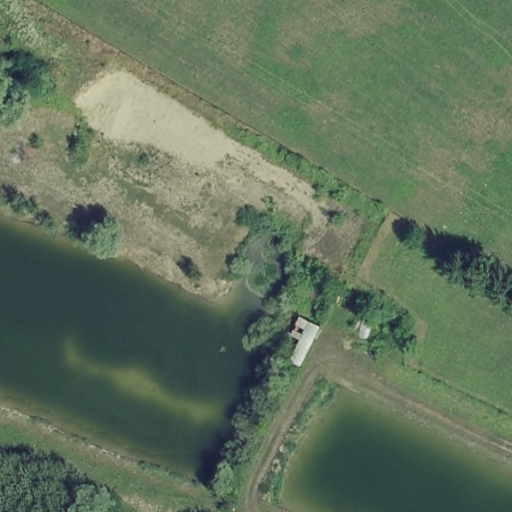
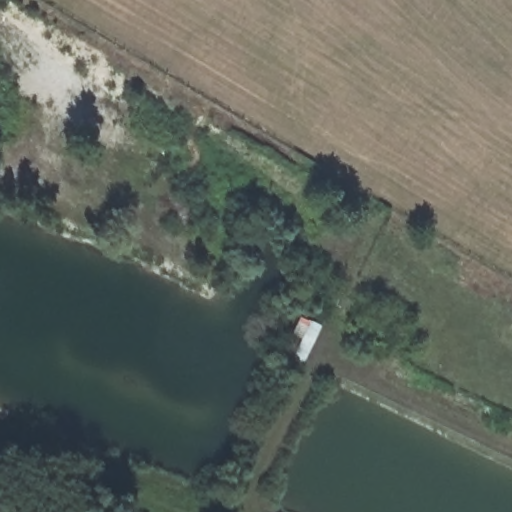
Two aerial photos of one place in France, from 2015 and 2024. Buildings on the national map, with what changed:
unchanged [(297,367),(284,359),(293,343),(286,336),(295,314),(317,325),(297,367)]

